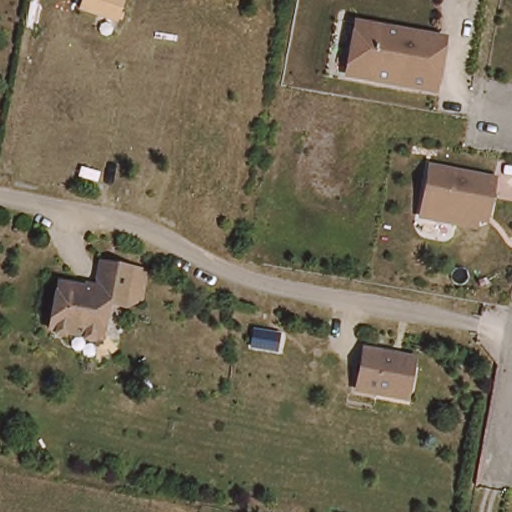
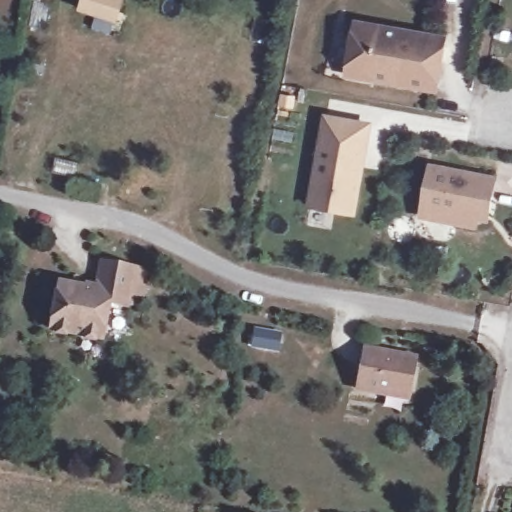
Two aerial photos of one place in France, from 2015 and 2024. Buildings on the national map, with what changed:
unchanged [(85,0),(124,0),(117,21),(82,9),(85,0)]
unchanged [(394,84),(348,76),(356,24),(445,40),(441,66),(436,91),(394,84)]
new [(309,208),(325,116),(372,123),(354,215),(309,208)]
demolished [(359,209),(303,197),(318,125),(349,132),(341,166),(367,172),(359,209)]
unchanged [(422,217),(423,210),(432,167),(496,180),(489,213),(487,222),(478,220),(477,227),(422,217)]
unchanged [(109,306),(103,340),(51,330),(60,283),(97,291),(103,263),(135,269),(129,298),(128,310),(109,306)]
unchanged [(384,398),(363,394),(371,354),(421,363),(414,399),(414,404),(384,398)]

